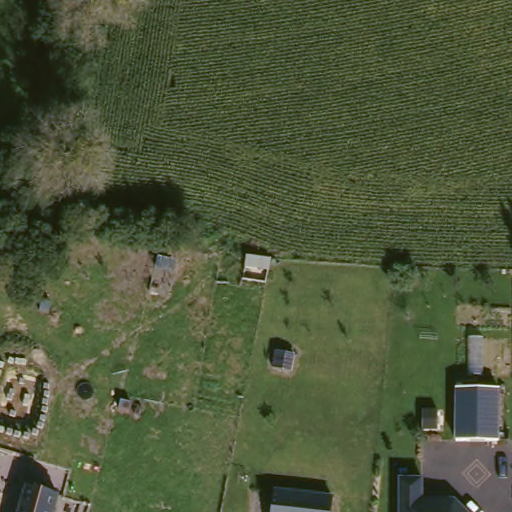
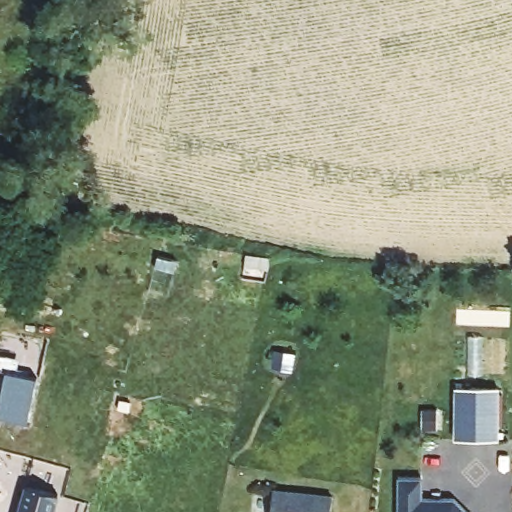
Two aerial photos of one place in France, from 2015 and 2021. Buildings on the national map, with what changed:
new [(38,380),(29,425),(0,419),(0,403),(6,373),(38,380)]
unchanged [(448,437),(447,385),(490,384),(491,436),(448,437)]
unchanged [(460,512),(392,512),(392,480),(415,480),(415,501),(448,500),(460,512)]
unchanged [(323,512),(264,512),(266,486),(325,491),(323,512)]
unchanged [(22,489),(57,497),(52,512),(16,512),(22,489)]

